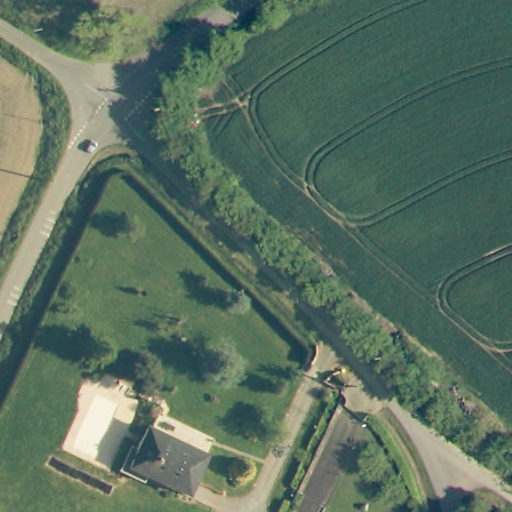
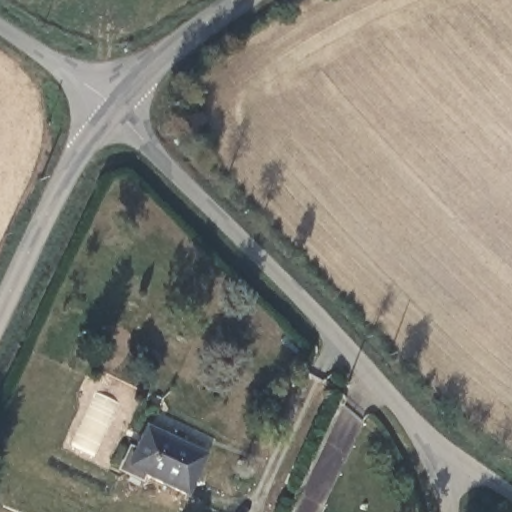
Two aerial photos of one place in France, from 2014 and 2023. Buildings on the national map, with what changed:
unchanged [(146,428),(205,457),(191,485),(185,497),(126,469),(146,428)]

